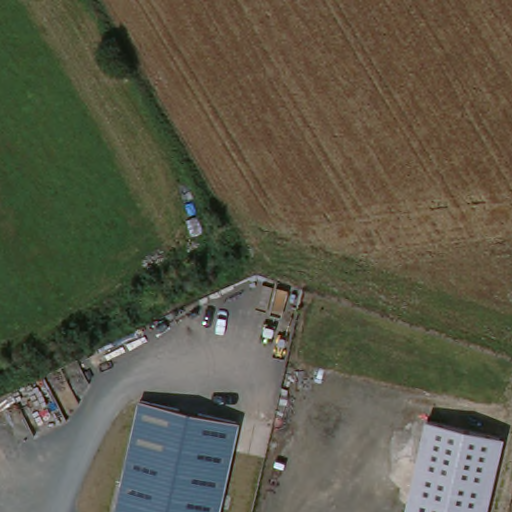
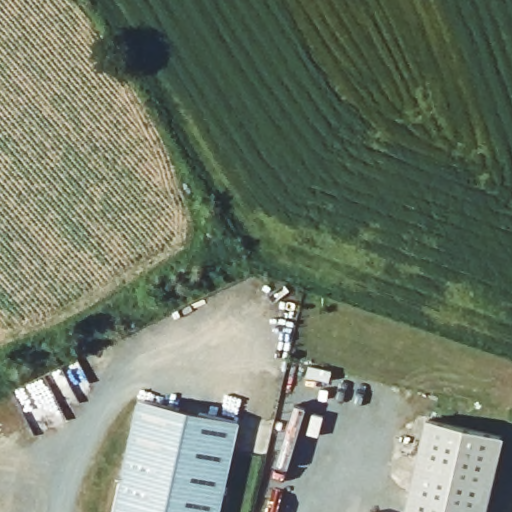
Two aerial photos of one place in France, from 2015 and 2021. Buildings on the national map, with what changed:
unchanged [(215,512),(112,512),(136,405),(234,427),(215,512)]
unchanged [(407,512),(426,425),(500,440),(484,512),(407,512)]

